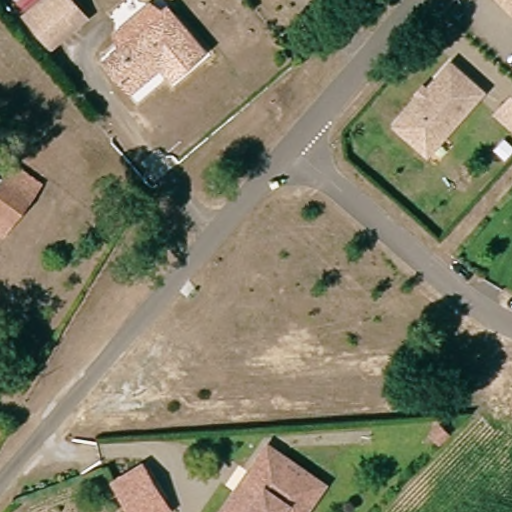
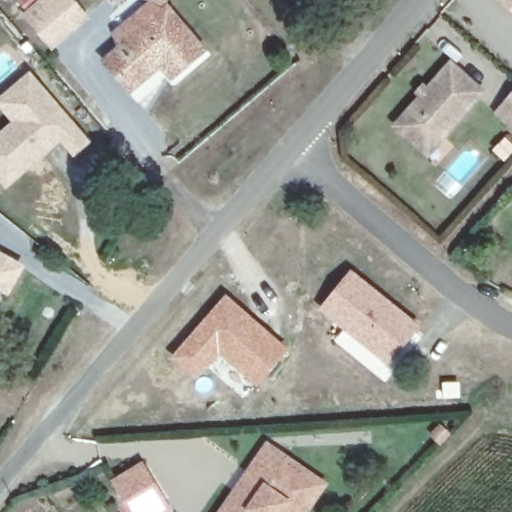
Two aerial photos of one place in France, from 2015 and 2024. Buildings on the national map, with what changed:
unchanged [(43,0),(73,0),(77,5),(89,19),(75,29),(49,49),(24,15),(43,0)]
unchanged [(512,0),(512,9),(503,0),(512,0)]
unchanged [(201,48),(174,69),(165,58),(129,86),(107,60),(126,44),(114,29),(145,4),(157,20),(170,10),(201,48)]
unchanged [(424,152),(396,127),(452,64),(487,96),(446,143),(431,159),(424,152)]
new [(90,141),(73,156),(61,142),(5,187),(0,181),(0,131),(11,122),(0,109),(0,95),(29,70),(90,141)]
unchanged [(512,100),(512,112),(506,107),(512,100)]
demolished [(9,236),(0,230),(0,159),(41,184),(9,236)]
new [(25,264),(10,295),(0,290),(0,251),(25,264)]
new [(317,308),(350,268),(421,327),(393,370),(383,382),(333,340),(342,329),(317,308)]
new [(225,293),(290,349),(257,388),(220,356),(194,381),(169,358),(225,293)]
unchanged [(266,447),(318,482),(298,512),(221,512),(266,447)]
unchanged [(109,481),(137,464),(161,498),(170,511),(168,512),(128,512),(109,481)]

